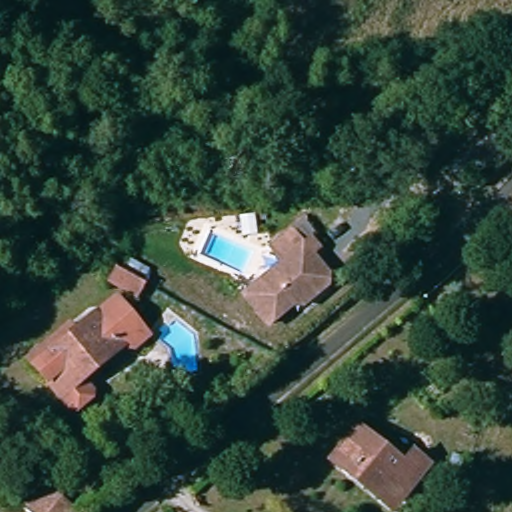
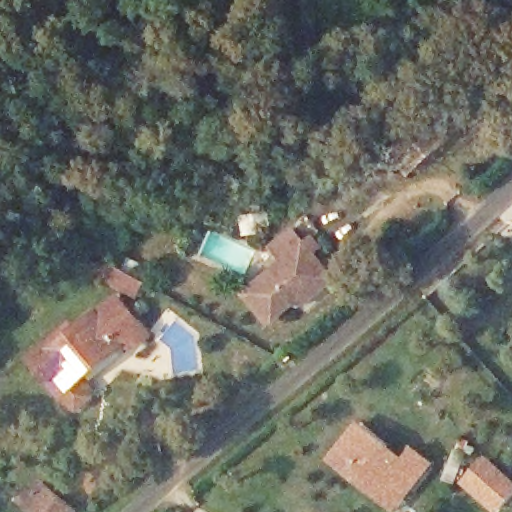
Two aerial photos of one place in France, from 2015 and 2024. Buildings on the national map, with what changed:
unchanged [(317,244),(306,255),(318,267),(324,262),(332,270),(300,303),(296,299),(270,326),(245,303),(280,267),(266,255),(285,235),(298,248),(310,236),(317,244)]
unchanged [(124,306),(96,293),(104,276),(130,289),(124,306)]
unchanged [(37,355),(57,335),(65,341),(99,305),(135,338),(122,351),(110,352),(74,390),(86,403),(87,411),(76,423),(66,420),(27,381),(45,362),(37,355)]
unchanged [(403,453),(410,442),(431,456),(412,485),(398,476),(390,488),(356,468),(350,477),(332,466),(360,425),(403,453)]
new [(501,512),(492,512),(460,484),(485,456),(512,479),(512,499),(501,512)]
unchanged [(35,478),(40,483),(51,473),(74,500),(62,512),(42,512),(23,491),(35,478)]

